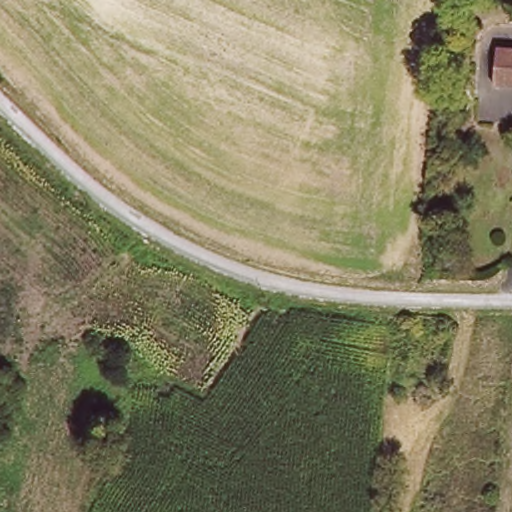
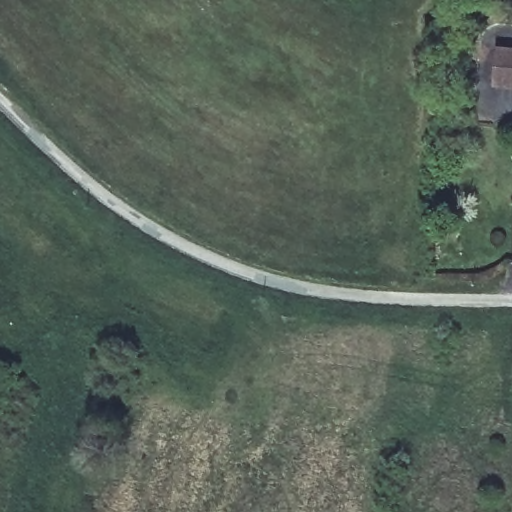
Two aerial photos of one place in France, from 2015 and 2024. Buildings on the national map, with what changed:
unchanged [(512,44),(512,84),(486,82),(487,42),(512,44)]

